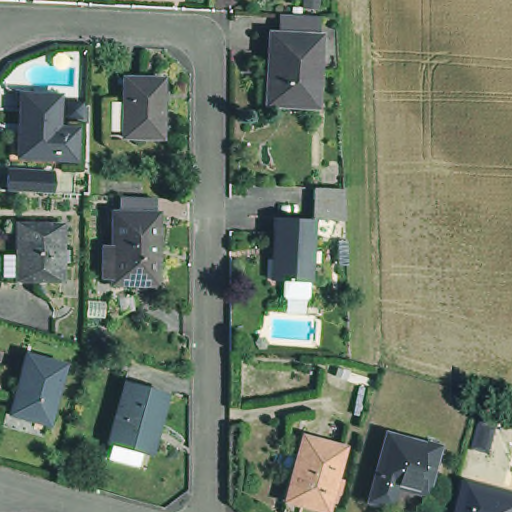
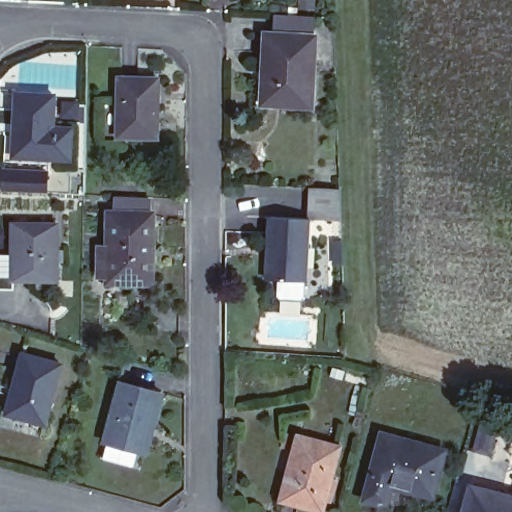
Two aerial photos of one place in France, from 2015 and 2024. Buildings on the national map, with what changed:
unchanged [(264,62),(265,24),(315,27),(312,97),(269,95),(263,95),(264,62)]
unchanged [(112,128),(113,69),(153,70),(153,83),(161,84),(161,94),(153,94),(153,129),(112,128)]
unchanged [(61,148),(43,148),(6,146),(8,84),(44,85),(43,119),(61,119),(61,148)]
unchanged [(6,171),(51,171),(50,192),(6,191),(6,171)]
unchanged [(284,288),(285,275),(274,275),(278,212),(316,214),(316,184),(346,186),(347,216),(316,216),(311,277),(310,277),(309,290),(284,288)]
unchanged [(103,241),(114,241),(114,204),(121,204),(121,189),(155,190),(155,204),(158,205),(159,277),(114,277),(114,270),(103,270),(103,241)]
unchanged [(65,257),(58,257),(58,276),(13,276),(14,217),(58,217),(58,247),(65,247),(65,257)]
unchanged [(61,357),(44,416),(6,405),(23,346),(61,357)]
unchanged [(140,445),(104,435),(121,375),(164,386),(154,418),(146,447),(140,445)]
unchanged [(327,485),(324,497),(283,486),(299,423),(341,434),(333,465),(339,467),(336,480),(334,487),(327,485)]
unchanged [(404,506),(378,501),(379,496),(358,491),(376,423),(439,441),(428,485),(424,483),(420,496),(404,506)]
unchanged [(477,477),(512,487),(512,512),(468,512),(477,477)]

